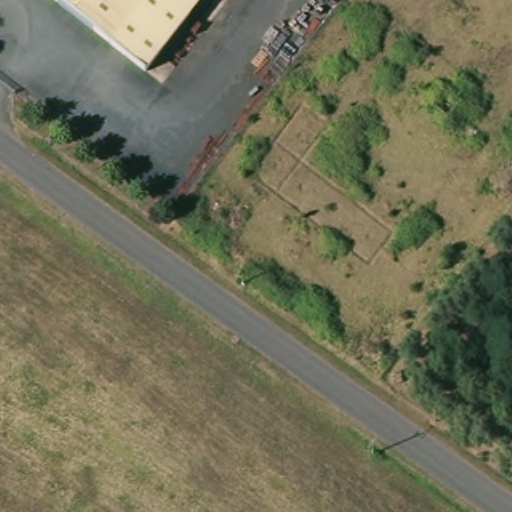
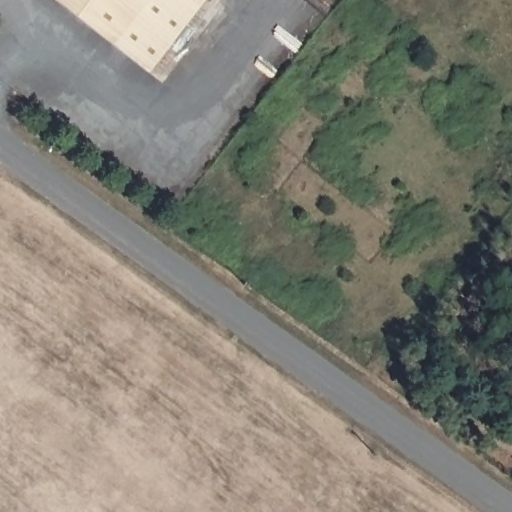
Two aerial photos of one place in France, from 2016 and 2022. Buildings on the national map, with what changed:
unchanged [(124,52),(56,0),(181,0),(136,60),(124,52)]
unchanged [(181,0),(206,0),(149,72),(136,60),(181,0)]

